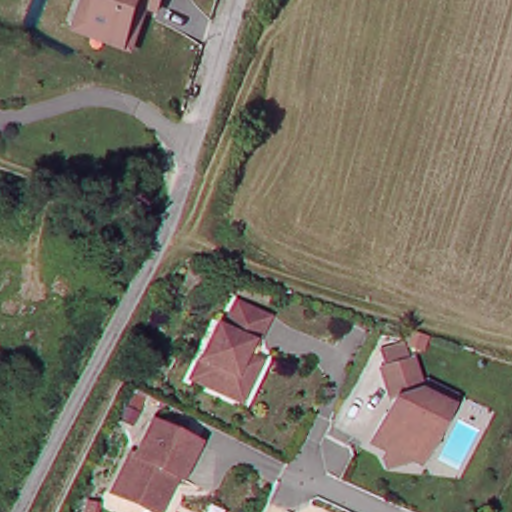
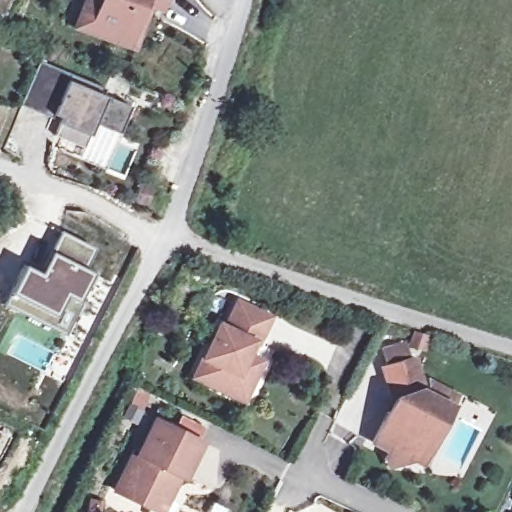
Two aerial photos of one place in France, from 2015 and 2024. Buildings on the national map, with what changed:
unchanged [(91,0),(168,0),(163,14),(151,10),(148,19),(136,54),(111,45),(79,33),(83,21),(91,0)]
new [(40,62),(106,89),(104,96),(131,107),(120,134),(95,124),(85,149),(55,137),(63,119),(55,116),(53,119),(22,106),(40,62)]
unchanged [(147,207),(136,203),(141,186),(152,189),(147,207)]
new [(23,264),(37,271),(60,230),(93,247),(85,267),(91,271),(63,333),(3,303),(23,264)]
unchanged [(200,358),(216,325),(222,327),(235,302),(267,317),(255,344),(250,342),(243,354),(258,362),(255,370),(240,401),(200,382),(190,377),(200,358)]
unchanged [(385,452),(369,443),(385,412),(391,399),(388,397),(380,368),(386,367),(380,350),(400,344),(405,361),(411,358),(420,387),(420,390),(423,392),(428,382),(454,395),(448,405),(440,422),(429,443),(418,465),(409,460),(395,465),(385,467),(382,457),(385,452)]
unchanged [(112,492),(131,453),(135,455),(152,420),(198,442),(180,478),(175,476),(158,512),(154,512),(149,510),(112,492)]

